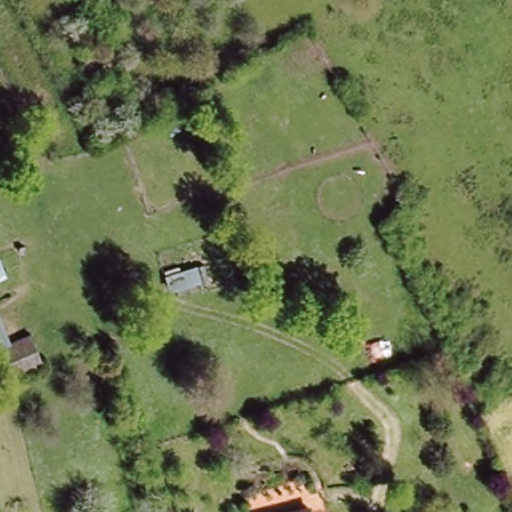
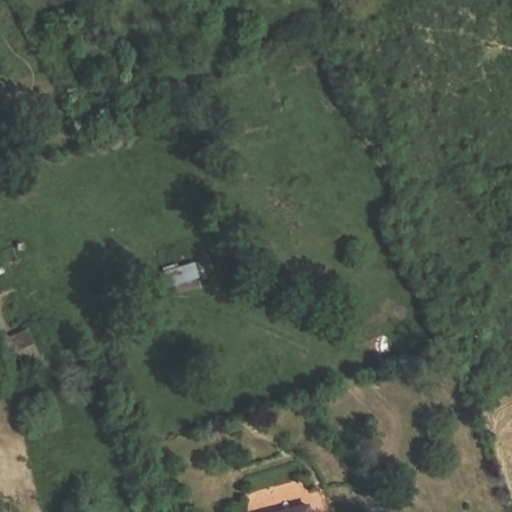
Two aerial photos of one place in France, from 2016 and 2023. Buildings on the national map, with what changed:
unchanged [(7,271),(0,273),(0,256),(7,271)]
unchanged [(197,261),(198,266),(205,264),(209,277),(200,279),(198,276),(167,286),(162,270),(197,261)]
unchanged [(0,342),(0,314),(9,339),(0,342)]
unchanged [(42,356),(15,368),(4,341),(9,339),(30,328),(42,356)]
unchanged [(311,512),(267,512),(309,502),(311,512)]

